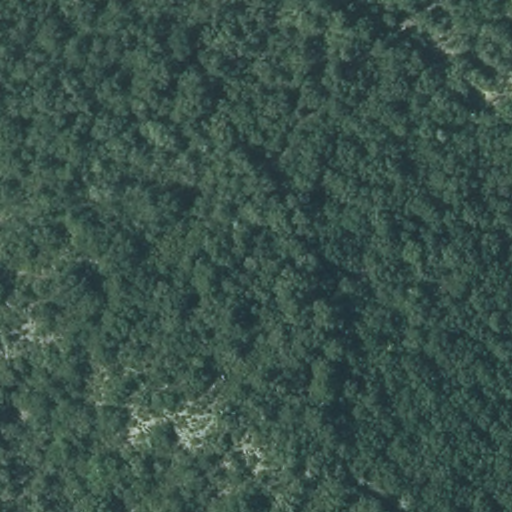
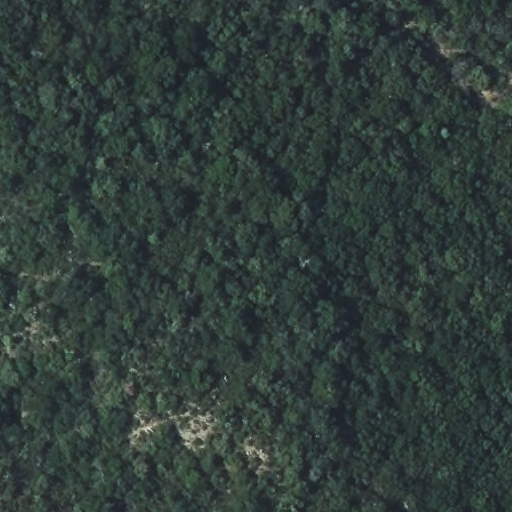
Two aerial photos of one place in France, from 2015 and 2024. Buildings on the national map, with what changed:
[]

